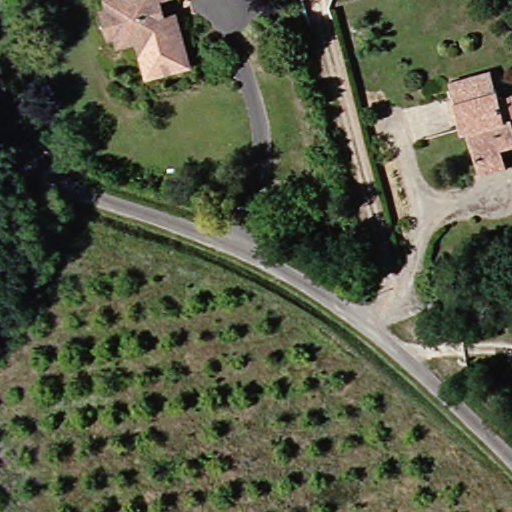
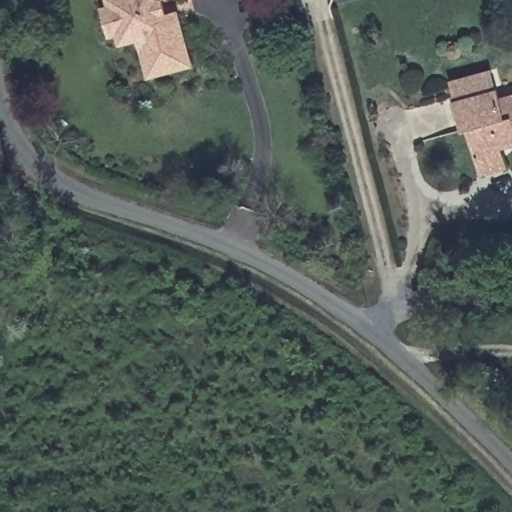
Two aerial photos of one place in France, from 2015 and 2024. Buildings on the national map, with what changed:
unchanged [(164,19),(175,17),(185,65),(147,72),(140,36),(116,40),(112,34),(106,8),(111,7),(110,0),(159,0),(164,19)]
unchanged [(485,173),(479,156),(470,128),(466,129),(457,101),(452,82),(495,70),(501,91),(503,99),(512,97),(512,148),(506,150),(510,167),(485,173)]

